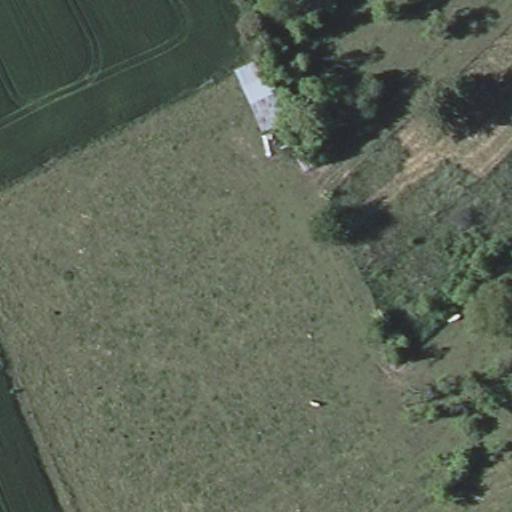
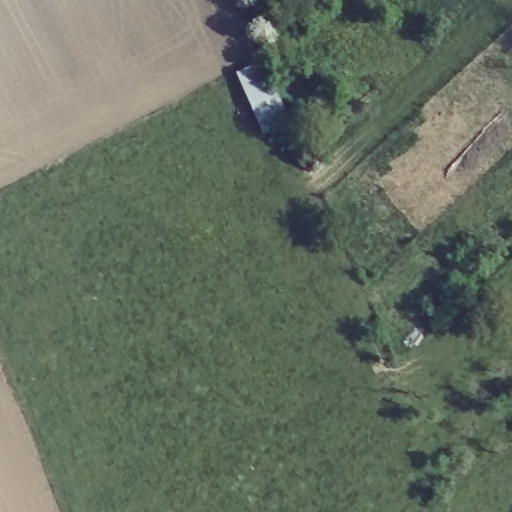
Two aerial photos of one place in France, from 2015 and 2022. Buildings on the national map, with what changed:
unchanged [(265,62),(291,122),(262,134),(235,75),(265,62)]

